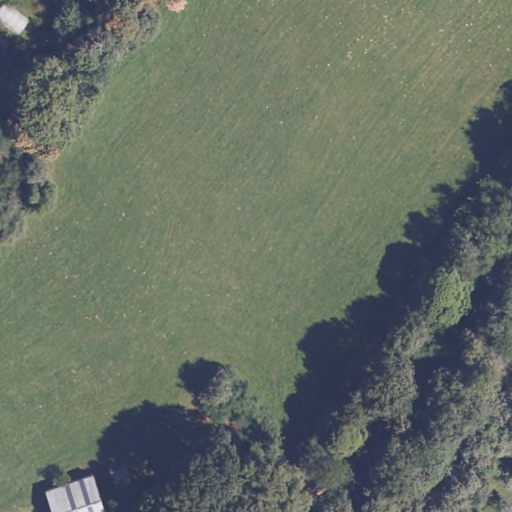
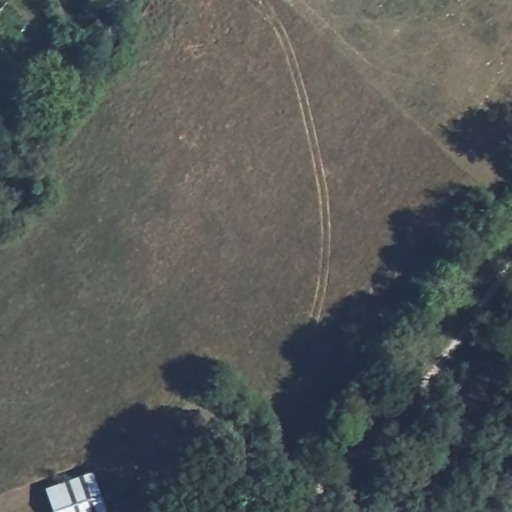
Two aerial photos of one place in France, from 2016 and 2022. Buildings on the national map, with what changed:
unchanged [(43,487),(93,472),(105,512),(52,512),(43,487)]

